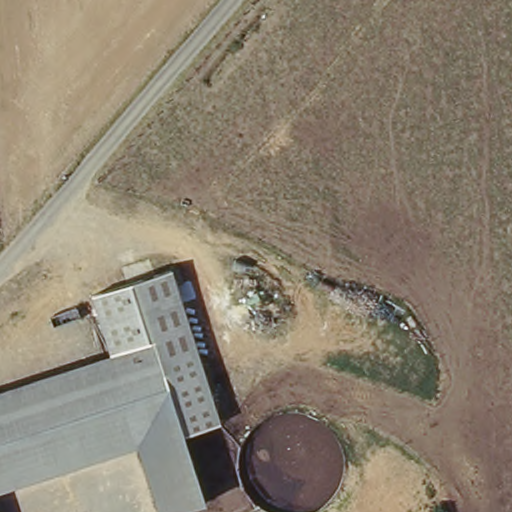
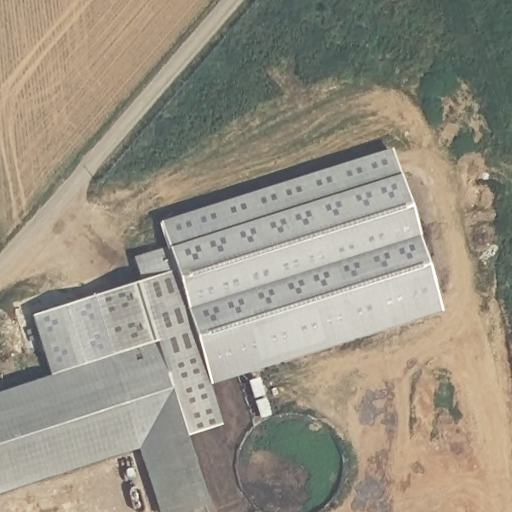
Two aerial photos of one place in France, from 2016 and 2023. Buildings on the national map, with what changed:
new [(128,259),(162,246),(155,223),(388,148),(440,312),(211,383),(174,269),(136,281),(128,259)]
unchanged [(154,342),(113,355),(95,294),(174,269),(224,424),(185,436),(154,342)]
new [(113,355),(46,377),(29,314),(95,294),(113,355)]
unchanged [(43,378),(154,342),(207,501),(174,512),(159,512),(137,446),(0,491),(0,392),(43,378)]

